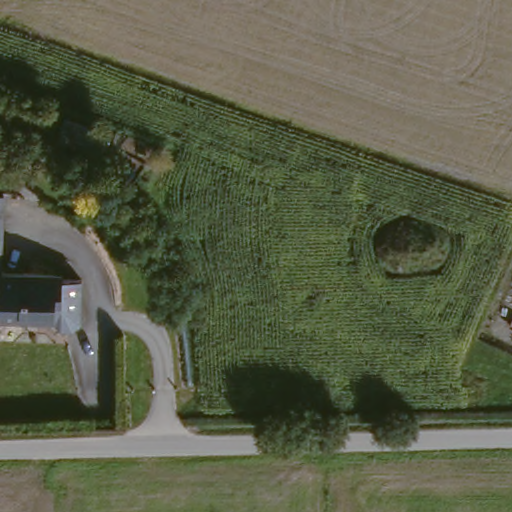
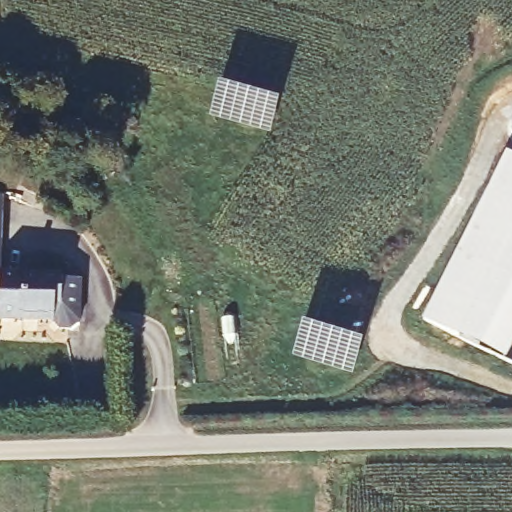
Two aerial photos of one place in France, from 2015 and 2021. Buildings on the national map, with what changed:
unchanged [(106,115),(101,138),(69,133),(73,110),(106,115)]
new [(512,350),(507,361),(422,319),(507,150),(512,153),(512,350)]
unchanged [(0,277),(59,277),(59,283),(61,309),(51,310),(51,324),(18,324),(16,318),(0,318),(0,277)]
unchanged [(51,310),(61,309),(59,283),(77,281),(80,323),(71,332),(58,333),(51,324),(51,310)]

